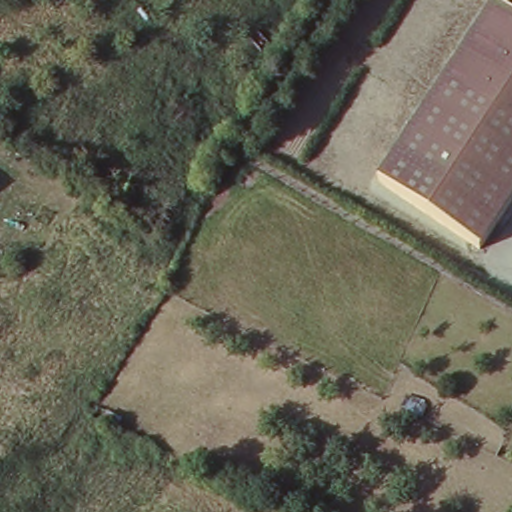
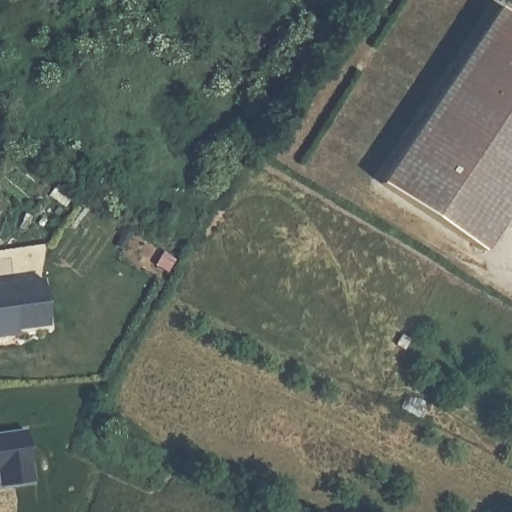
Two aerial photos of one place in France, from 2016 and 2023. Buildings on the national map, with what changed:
unchanged [(512,19),(512,193),(478,245),(378,178),(493,6),(512,19)]
new [(51,325),(17,329),(17,333),(0,336),(0,285),(46,278),(51,325)]
new [(35,480),(2,485),(0,473),(0,434),(27,430),(35,480)]

